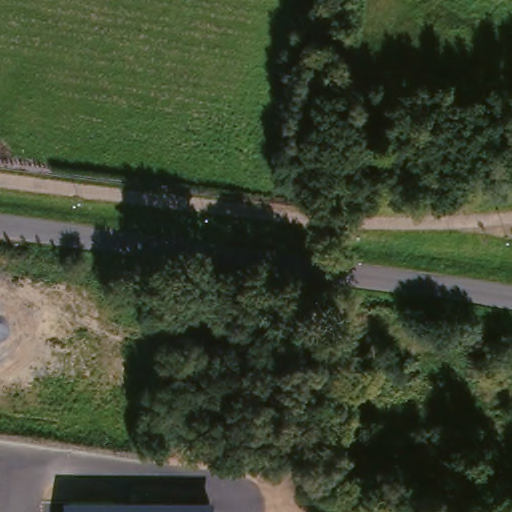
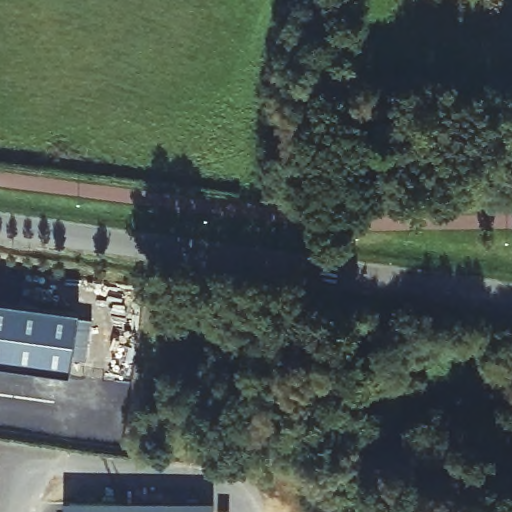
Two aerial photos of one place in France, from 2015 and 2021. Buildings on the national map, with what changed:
new [(78,314),(71,374),(0,364),(0,304),(78,314)]
unchanged [(63,502),(213,502),(213,512),(63,512),(63,502)]

